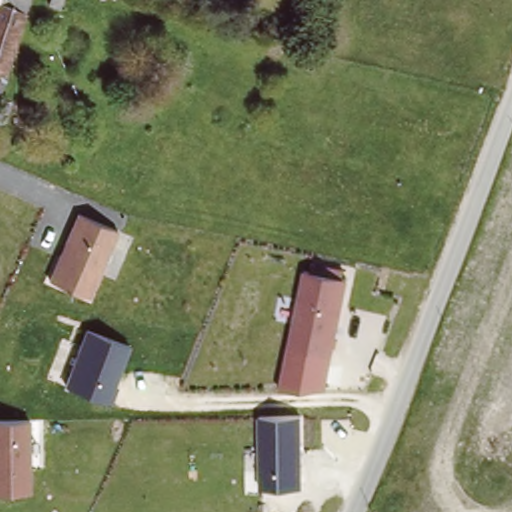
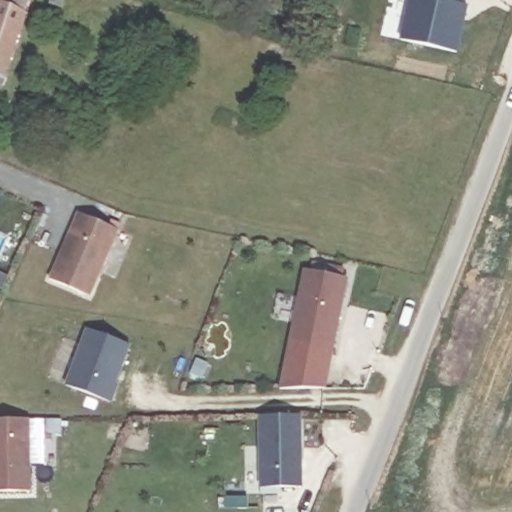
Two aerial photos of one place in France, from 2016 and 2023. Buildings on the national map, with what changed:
unchanged [(3,89),(0,88),(0,0),(32,0),(10,69),(3,89)]
unchanged [(60,7),(50,4),(51,0),(63,0),(60,7)]
new [(407,0),(463,0),(462,4),(467,6),(457,54),(398,40),(407,0)]
unchanged [(75,213),(117,230),(90,297),(47,279),(75,213)]
unchanged [(302,269),(347,278),(322,385),(281,381),(302,269)]
unchanged [(84,328),(128,346),(110,402),(64,384),(84,328)]
unchanged [(257,414),(302,415),(302,489),(259,489),(257,414)]
unchanged [(30,420),(30,491),(0,493),(0,421),(30,420)]

